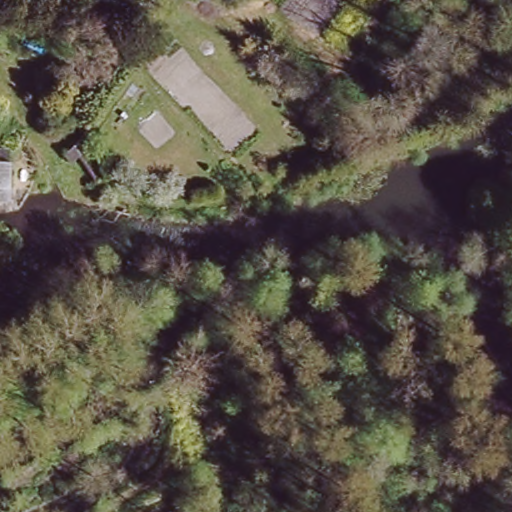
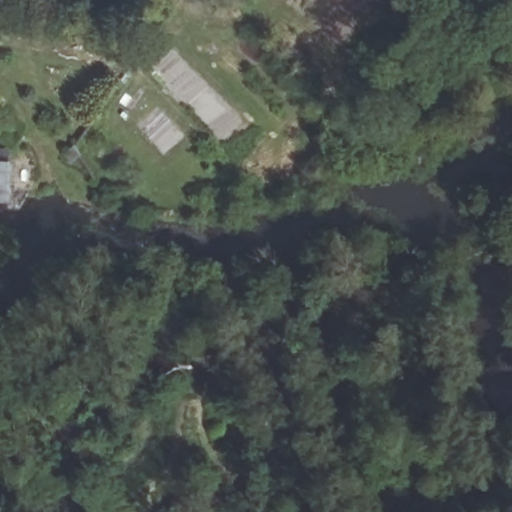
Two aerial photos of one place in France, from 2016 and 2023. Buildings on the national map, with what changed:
unchanged [(8,160),(5,197),(0,197),(0,160),(8,160)]

